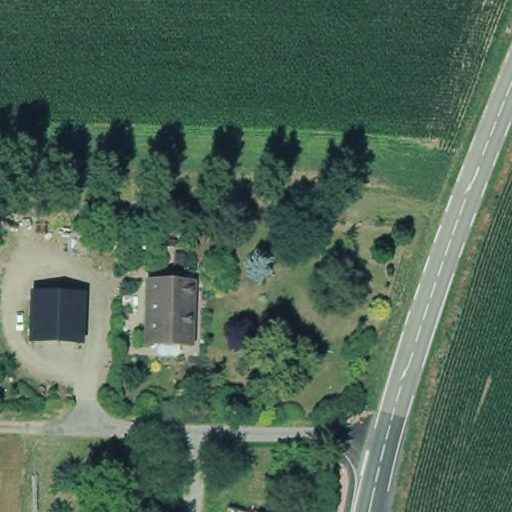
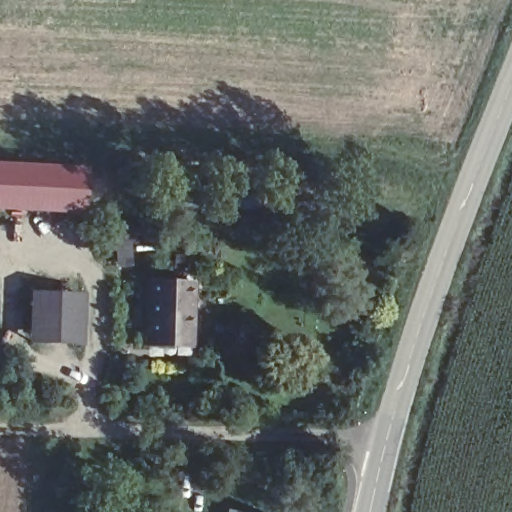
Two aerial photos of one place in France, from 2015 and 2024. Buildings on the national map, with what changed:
new [(90,167),(88,214),(0,210),(0,162),(90,167)]
unchanged [(188,345),(146,344),(145,341),(145,333),(147,279),(190,280),(189,334),(189,343),(188,345)]
unchanged [(32,338),(32,299),(80,299),(80,340),(80,344),(31,343),(32,338)]

